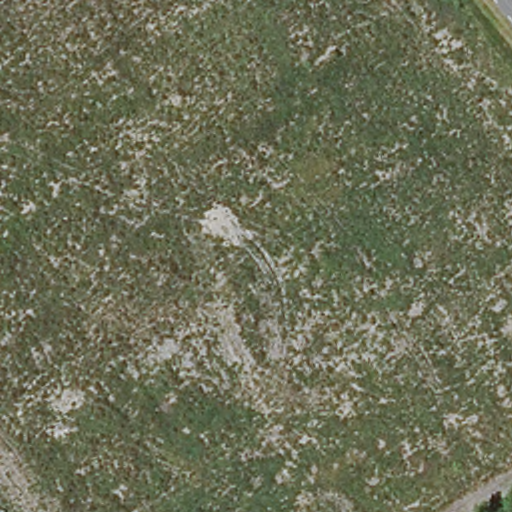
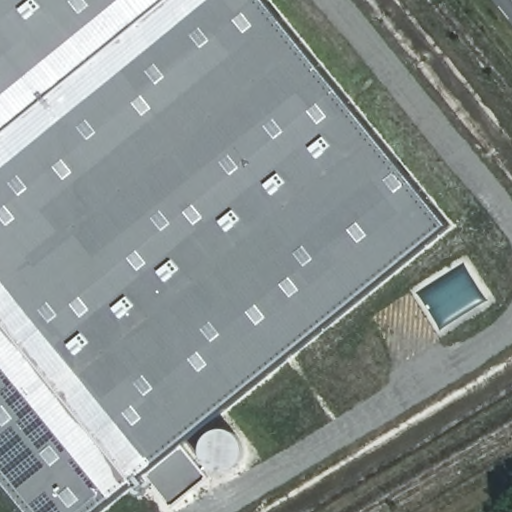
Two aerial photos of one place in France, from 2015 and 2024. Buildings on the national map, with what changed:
new [(182,445),(206,473),(174,506),(149,476),(106,512),(27,512),(0,478),(0,0),(268,0),(451,224),(182,445)]
new [(207,477),(172,506),(144,471),(180,441),(207,477)]

